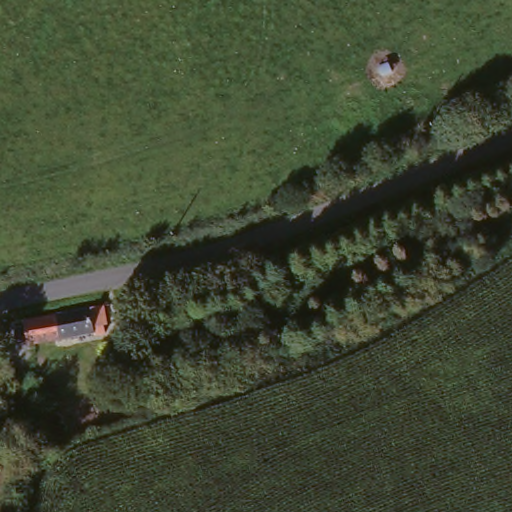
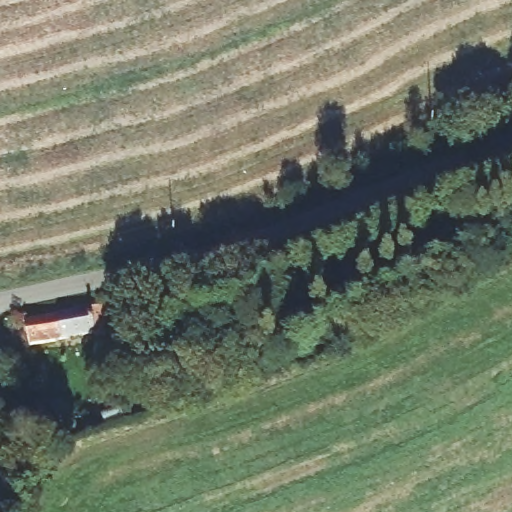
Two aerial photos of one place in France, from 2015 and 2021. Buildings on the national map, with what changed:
unchanged [(59,313),(108,304),(111,322),(108,322),(108,331),(91,334),(91,332),(63,337),(25,345),(21,322),(24,321),(59,313)]

